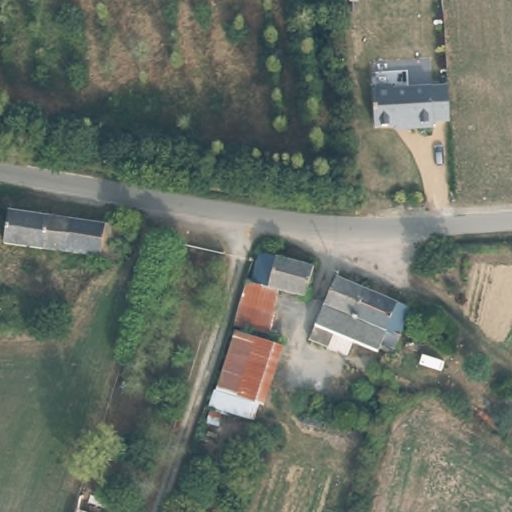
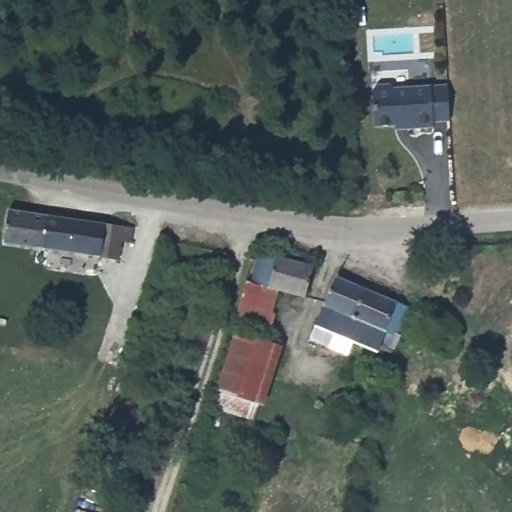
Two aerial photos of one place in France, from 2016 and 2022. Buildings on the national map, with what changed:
unchanged [(451,112),(451,125),(435,126),(435,132),(410,133),(409,129),(377,131),(375,95),(378,91),(392,90),(396,93),(450,91),(451,112)]
unchanged [(131,219),(131,240),(115,239),(114,256),(4,251),(7,210),(131,219)]
unchanged [(315,260),(305,293),(278,283),(251,274),(262,241),(315,260)]
unchanged [(278,283),(265,327),(237,319),(240,308),(251,274),(278,283)]
unchanged [(415,306),(398,352),(392,350),(388,360),(342,340),(337,353),(315,343),(342,275),(415,306)]
unchanged [(272,340),(263,367),(226,353),(235,327),(272,340)]
unchanged [(263,367),(248,415),(211,402),(226,353),(263,367)]

